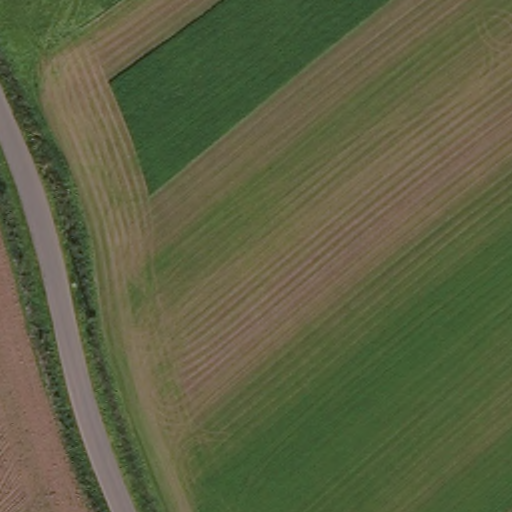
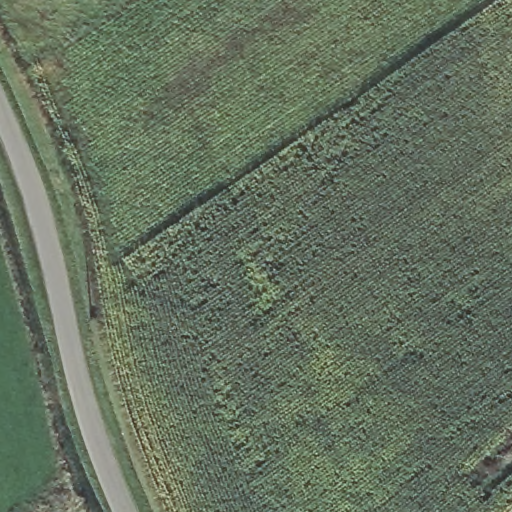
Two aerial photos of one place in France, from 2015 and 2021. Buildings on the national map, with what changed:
[]

